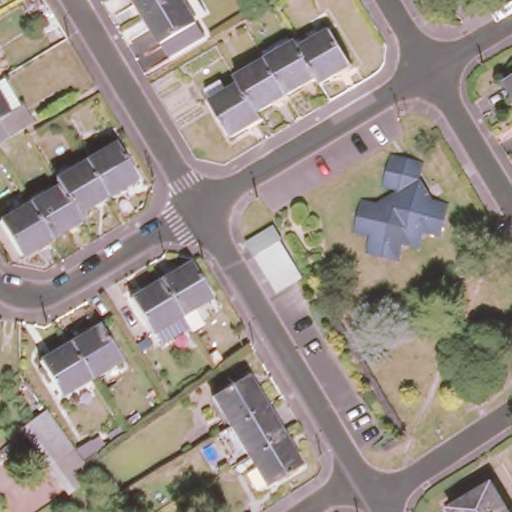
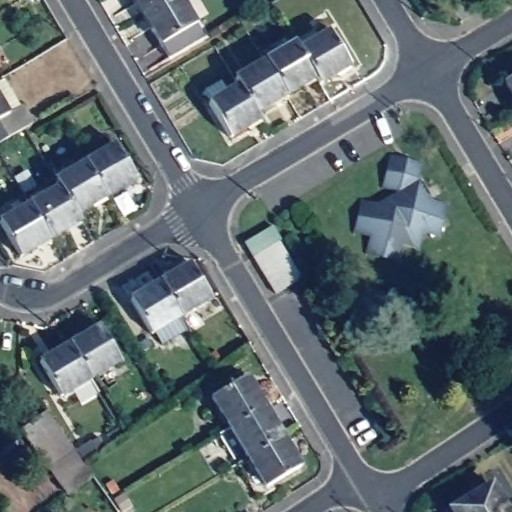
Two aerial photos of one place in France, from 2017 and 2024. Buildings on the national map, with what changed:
unchanged [(136,0),(165,0),(143,13),(136,0)]
unchanged [(166,50),(143,13),(165,0),(184,0),(201,28),(166,50)]
unchanged [(330,31),(352,66),(322,84),(317,76),(302,48),(330,31)]
unchanged [(288,95),(267,59),(297,41),(302,48),(317,76),(288,95)]
unchanged [(257,113),(240,84),(237,78),(267,59),(288,95),(257,113)]
unchanged [(512,74),(512,92),(504,79),(512,74)]
unchanged [(29,131),(27,132),(0,149),(0,85),(2,84),(29,131)]
unchanged [(231,137),(230,136),(219,142),(210,125),(220,119),(210,102),(240,84),(257,113),(261,119),(231,137)]
unchanged [(117,141),(138,175),(108,192),(88,157),(117,141)]
unchanged [(381,256),(364,252),(369,235),(351,232),(357,214),(360,195),(377,201),(397,189),(380,186),(385,167),(407,155),(423,159),(420,178),(432,197),(449,199),(444,217),(440,235),(423,230),(420,248),(402,243),(398,260),(381,256)]
unchanged [(88,157),(108,192),(79,209),(62,182),(58,174),(88,157)]
unchanged [(53,233),(33,199),(62,182),(79,209),(83,216),(53,233)]
unchanged [(23,251),(3,217),(33,199),(53,233),(23,251)]
unchanged [(262,266),(255,254),(247,240),(272,225),(280,237),(279,238),(286,250),(293,261),(302,273),(276,290),(268,277),(262,266)]
unchanged [(194,258),(215,295),(187,310),(167,274),(194,258)]
unchanged [(155,328),(135,293),(167,274),(187,310),(155,328)]
unchanged [(99,326),(118,361),(91,377),(71,342),(99,326)]
unchanged [(63,394),(43,358),(71,342),(91,377),(63,394)]
unchanged [(210,394),(247,373),(265,403),(228,423),(210,394)]
unchanged [(228,423),(265,403),(282,433),(247,454),(228,423)]
unchanged [(47,458),(41,450),(20,429),(49,408),(66,432),(72,439),(85,459),(62,477),(47,458)]
unchanged [(299,462),(264,484),(247,454),(282,433),(299,462)]
unchanged [(512,511),(510,512),(457,512),(452,504),(492,480),(512,511)]
unchanged [(512,512),(510,512),(512,511),(512,512)]

